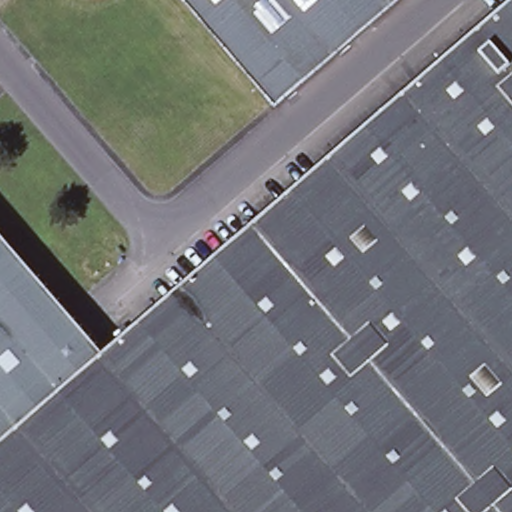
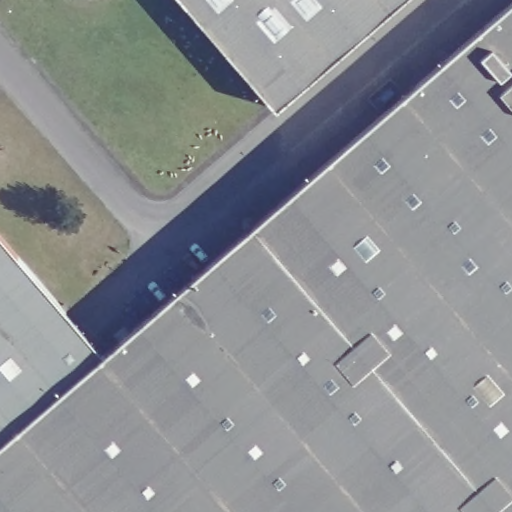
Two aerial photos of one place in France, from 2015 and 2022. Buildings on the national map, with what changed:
unchanged [(276,109),(271,103),(183,0),(402,0),(276,109)]
unchanged [(0,512),(0,444),(103,355),(512,1),(512,512),(0,512)]
unchanged [(0,320),(0,236),(41,284),(0,320)]
unchanged [(69,316),(103,355),(0,444),(0,320),(41,284),(64,311),(69,316)]

